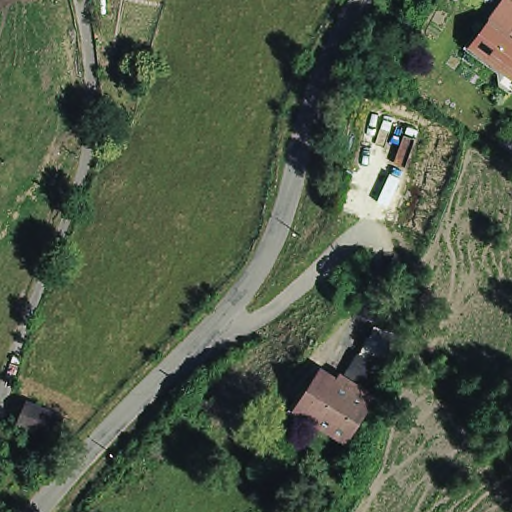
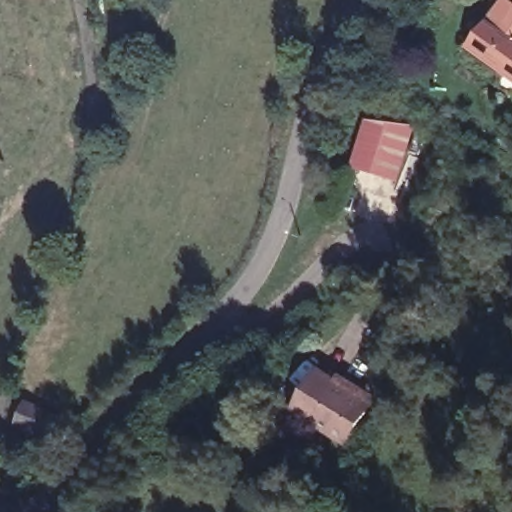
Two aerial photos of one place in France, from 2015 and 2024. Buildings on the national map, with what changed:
unchanged [(512,0),(512,62),(501,71),(472,44),(506,0),(512,0)]
new [(416,127),(400,186),(355,171),(370,120),(416,127)]
unchanged [(368,399),(345,435),(297,405),(321,368),(368,399)]
unchanged [(22,421),(30,403),(62,417),(54,436),(22,421)]

